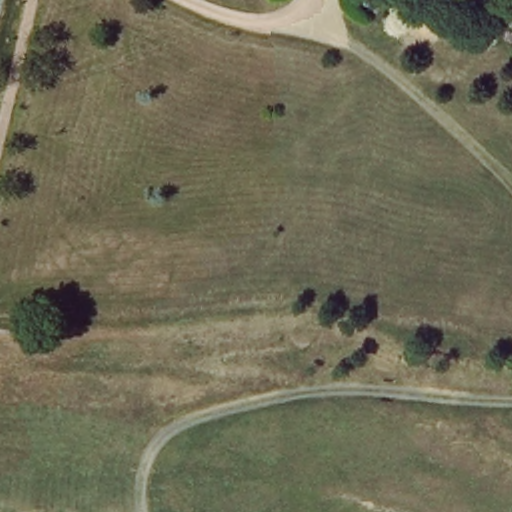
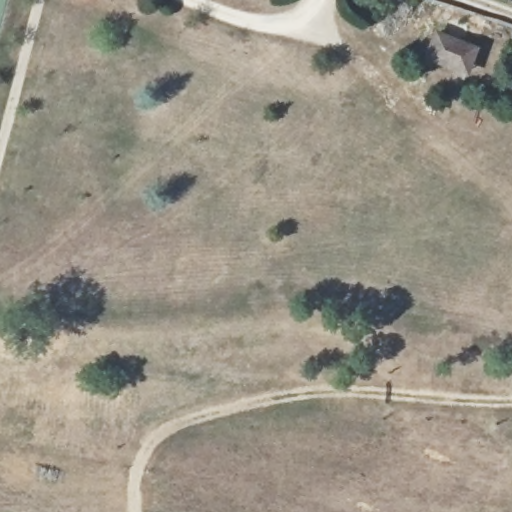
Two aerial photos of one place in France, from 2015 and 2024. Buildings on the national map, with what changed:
new [(479,47),(468,75),(424,58),(435,29),(479,47)]

